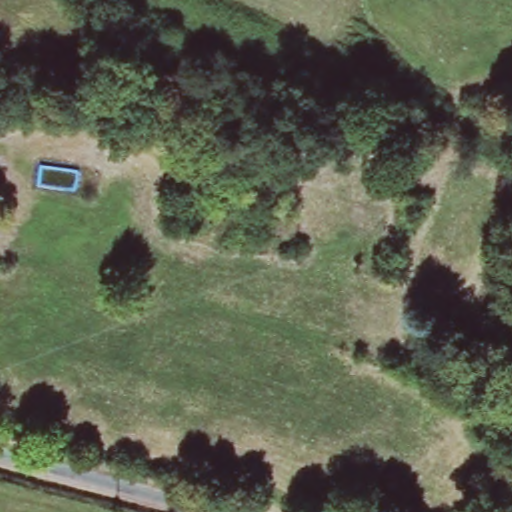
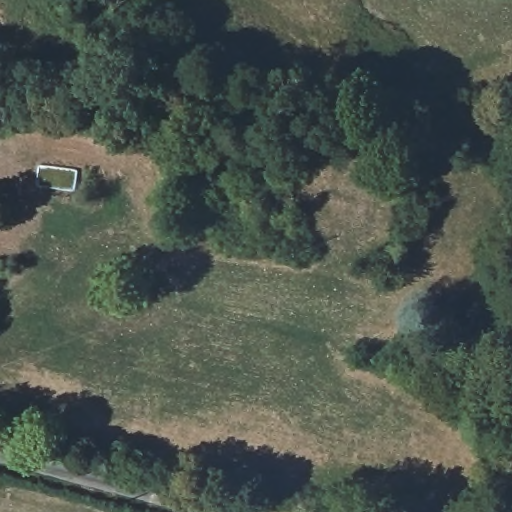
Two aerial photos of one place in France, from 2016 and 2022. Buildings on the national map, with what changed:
[]

